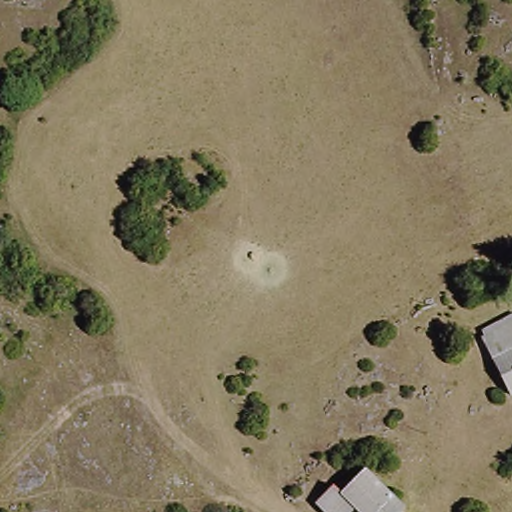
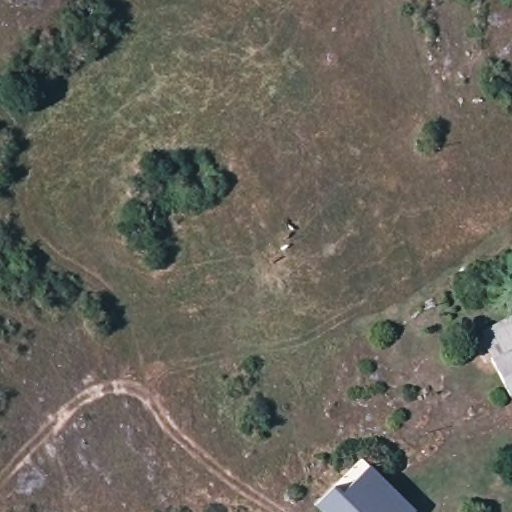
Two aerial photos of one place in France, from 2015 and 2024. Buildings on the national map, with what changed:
unchanged [(507,396),(477,328),(512,309),(512,393),(507,396)]
unchanged [(317,512),(313,508),(337,483),(343,490),(367,468),(408,507),(404,512),(317,512)]

